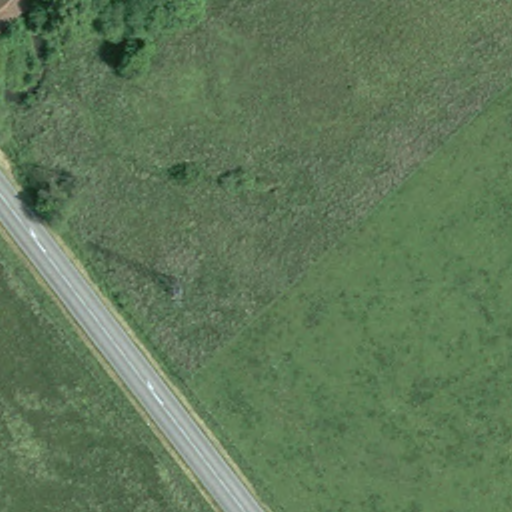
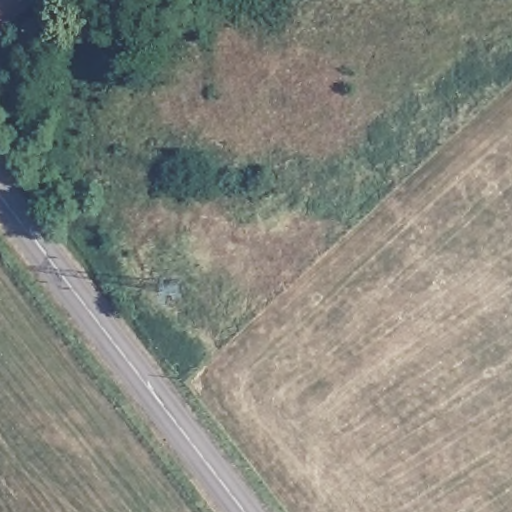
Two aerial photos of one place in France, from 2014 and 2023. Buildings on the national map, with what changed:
unchanged [(0,0),(31,0),(0,28),(0,0)]

